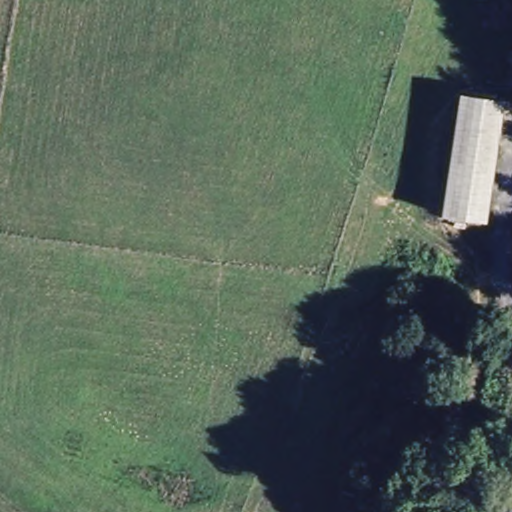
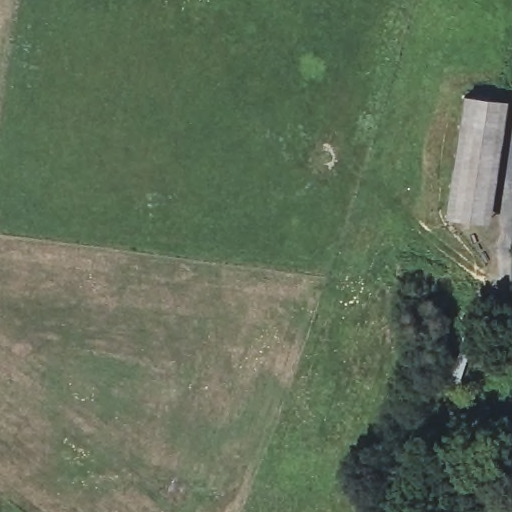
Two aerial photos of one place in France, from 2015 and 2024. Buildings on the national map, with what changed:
unchanged [(507,102),(488,225),(443,218),(462,95),(507,102)]

